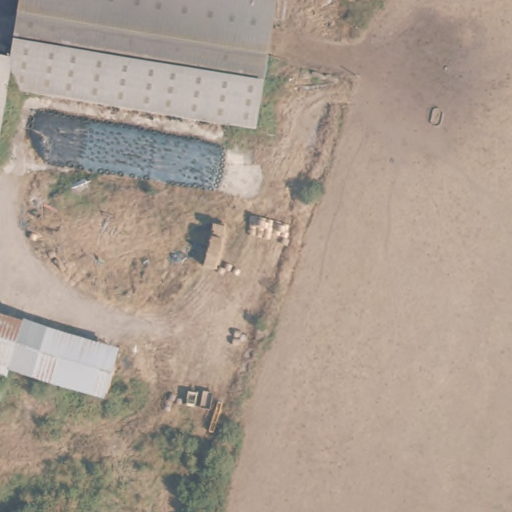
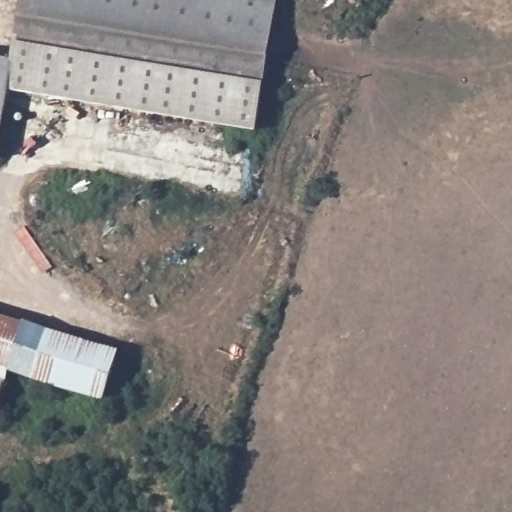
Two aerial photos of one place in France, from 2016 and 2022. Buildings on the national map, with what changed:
unchanged [(255,134),(6,90),(0,124),(0,63),(10,64),(22,0),(248,0),(278,5),(255,134)]
unchanged [(23,326),(9,375),(7,381),(0,379),(0,320),(22,326),(23,326)]
unchanged [(23,326),(114,350),(98,397),(9,375),(23,326)]
unchanged [(0,404),(0,379),(7,381),(0,404)]

